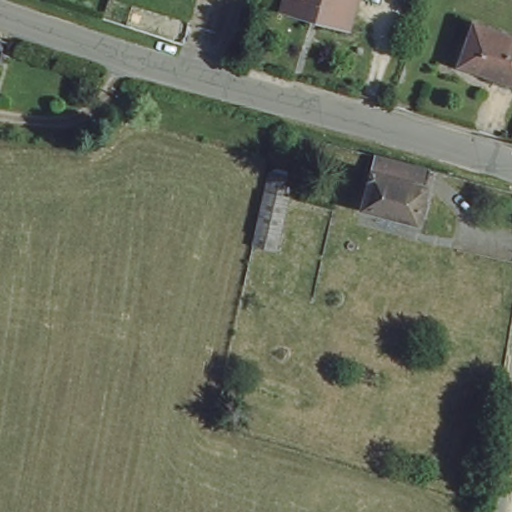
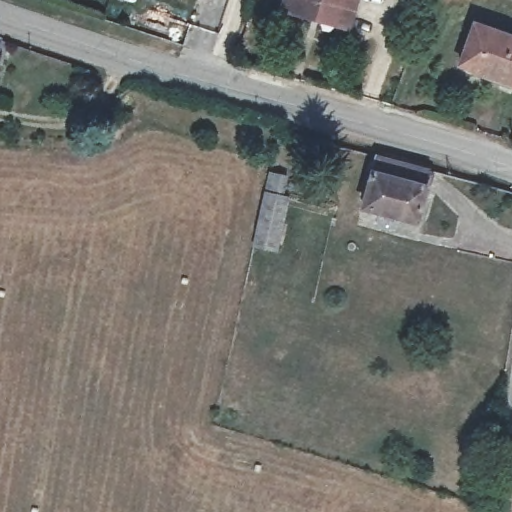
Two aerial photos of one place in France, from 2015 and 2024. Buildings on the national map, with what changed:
unchanged [(289,8),(291,0),(358,0),(352,24),(289,8)]
unchanged [(512,38),(512,87),(459,61),(478,21),(512,38)]
unchanged [(432,169),(416,219),(361,203),(377,151),(432,169)]
unchanged [(278,240),(254,234),(266,184),(288,188),(278,240)]

